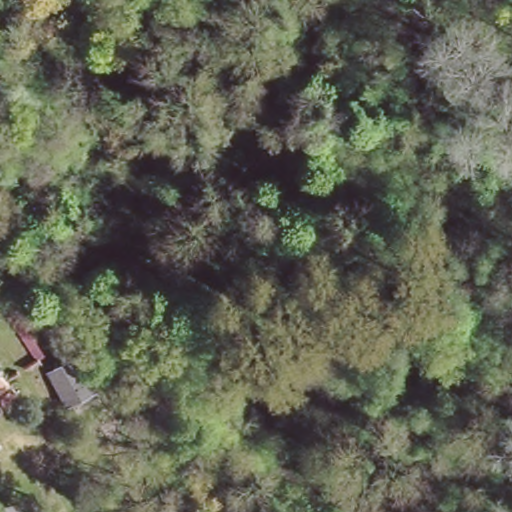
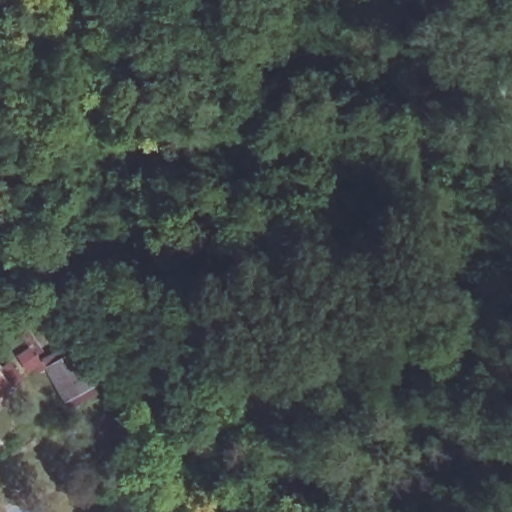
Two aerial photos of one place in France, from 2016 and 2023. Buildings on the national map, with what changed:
unchanged [(45,367),(58,360),(71,351),(93,386),(81,393),(68,402),(45,367)]
unchanged [(0,388),(0,370),(9,381),(0,388)]
unchanged [(0,410),(0,399),(5,407),(0,410)]

